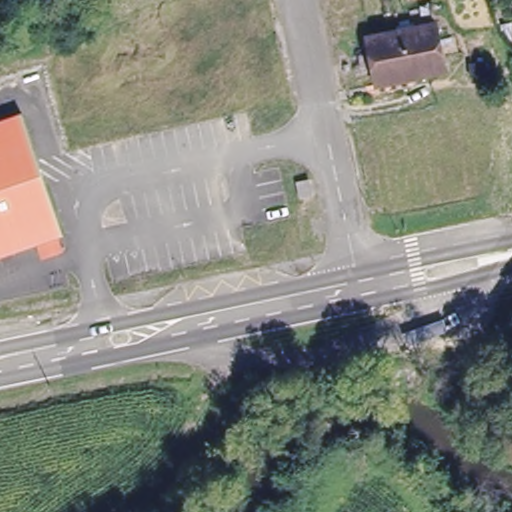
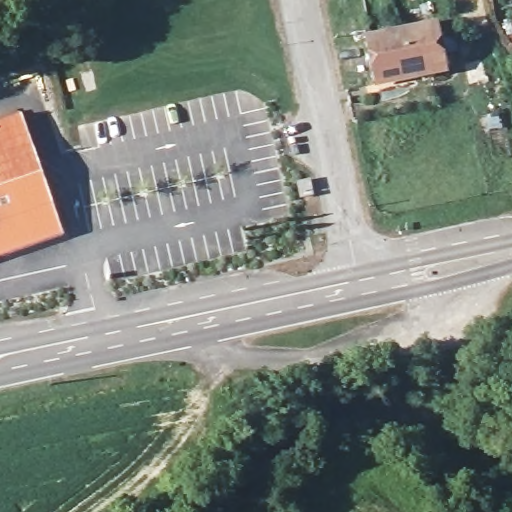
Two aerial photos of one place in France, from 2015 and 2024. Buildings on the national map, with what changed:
unchanged [(512,17),(512,47),(507,47),(504,18),(512,17)]
unchanged [(411,72),(379,79),(371,35),(442,19),(448,50),(453,64),(411,72)]
unchanged [(60,243),(56,244),(32,251),(0,261),(0,126),(24,119),(60,243)]

